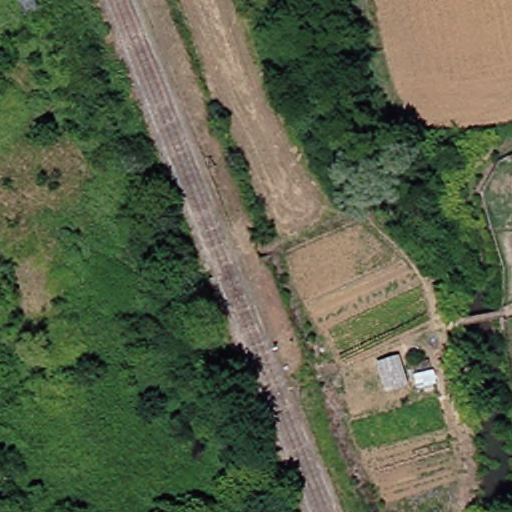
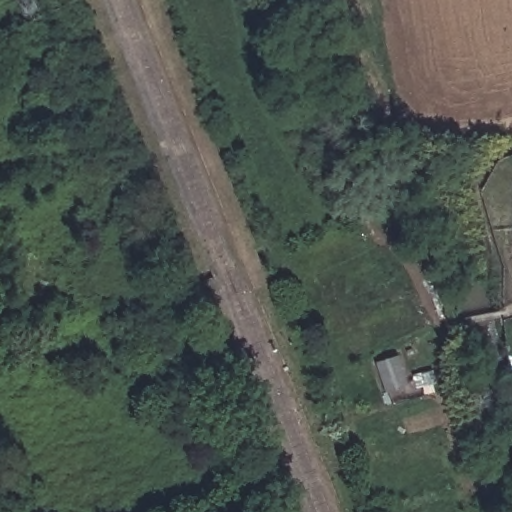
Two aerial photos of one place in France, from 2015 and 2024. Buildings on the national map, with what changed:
unchanged [(507,500),(509,455),(512,455),(512,500),(507,500)]

